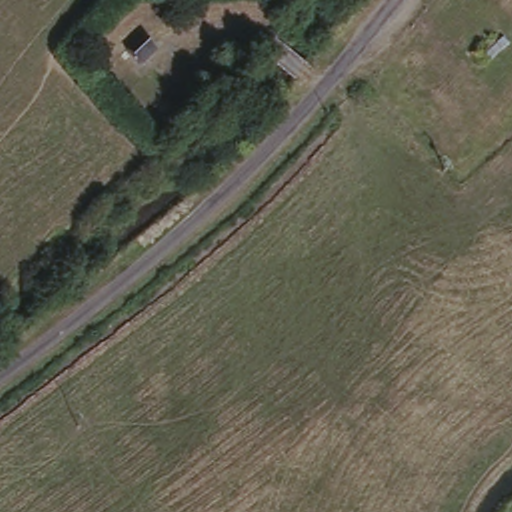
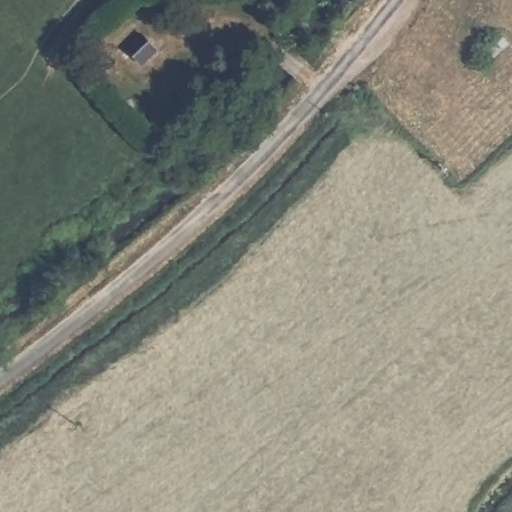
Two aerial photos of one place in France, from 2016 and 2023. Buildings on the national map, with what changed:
unchanged [(141,62),(126,49),(140,32),(156,46),(141,62)]

